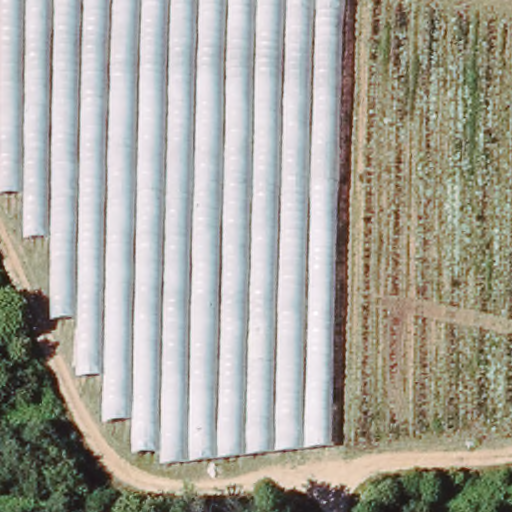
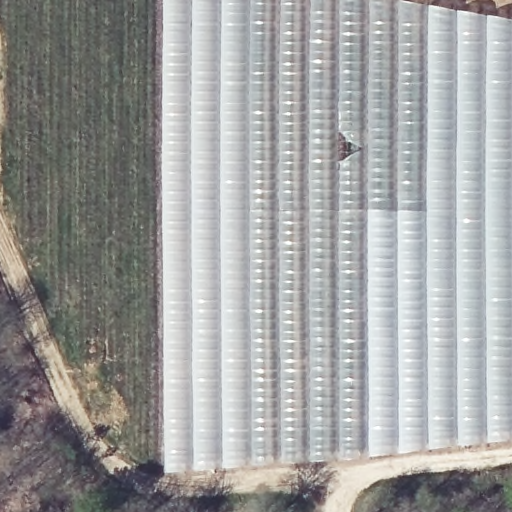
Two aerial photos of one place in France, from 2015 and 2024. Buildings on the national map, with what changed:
demolished [(330,446),(165,465),(134,456),(0,192),(0,159),(2,0),(393,0),(512,17),(512,427),(330,446)]
new [(512,18),(512,439),(489,441),(460,445),(367,456),(294,462),(224,467),(164,472),(163,0),(407,0),(512,18)]

